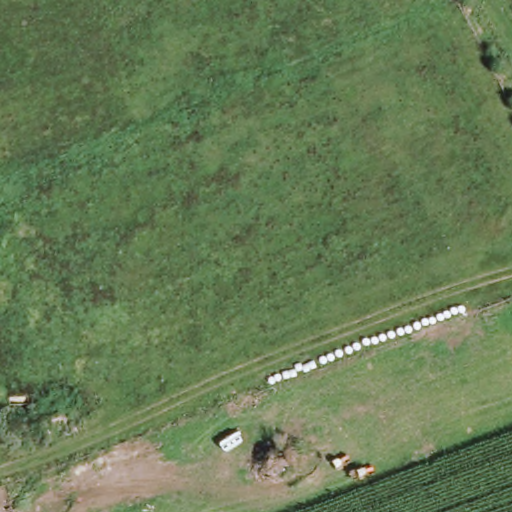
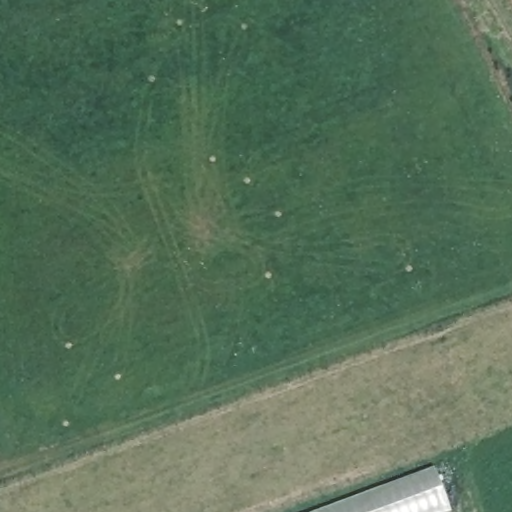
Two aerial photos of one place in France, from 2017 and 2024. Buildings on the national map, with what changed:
new [(451,512),(316,512),(435,468),(451,512)]

